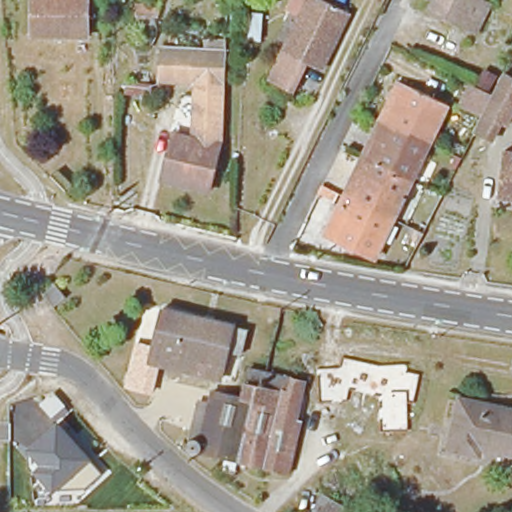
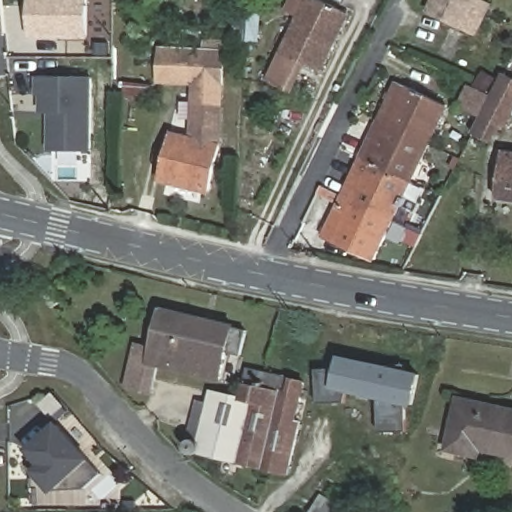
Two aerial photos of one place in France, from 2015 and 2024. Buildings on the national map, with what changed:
unchanged [(87,39),(31,39),(31,0),(87,0),(87,39)]
unchanged [(319,75),(306,69),(294,93),(270,82),(282,56),(309,0),(313,0),(346,16),(319,75)]
unchanged [(476,33),(464,27),(429,11),(434,0),(476,0),(489,5),(476,33)]
unchanged [(203,51),(204,41),(224,42),(221,83),(193,81),(158,79),(160,49),(203,51)]
unchanged [(477,132),(486,113),(507,71),(512,74),(512,118),(509,124),(500,120),(491,139),(477,132)]
new [(93,150),(49,150),(50,113),(41,113),(41,96),(37,95),(37,77),(93,77),(93,150)]
unchanged [(219,143),(218,156),(208,199),(161,189),(172,146),(175,133),(192,136),(193,81),(221,83),(219,143)]
unchanged [(470,83),(478,87),(490,93),(480,114),(469,109),(460,105),(470,83)]
unchanged [(327,241),(343,202),(360,164),(377,124),(394,84),(404,88),(442,105),(373,261),(327,241)]
unchanged [(498,203),(504,155),(512,156),(512,205),(498,203)]
unchanged [(50,271),(42,266),(48,258),(55,263),(50,271)]
unchanged [(232,325),(232,327),(246,330),(241,355),(226,352),(220,378),(181,370),(180,378),(171,384),(155,381),(152,392),(126,386),(136,344),(153,348),(161,310),(232,325)]
new [(349,392),(347,402),(318,404),(316,368),(337,367),(339,354),(421,372),(417,389),(414,406),(407,405),(408,432),(379,433),(378,398),(349,392)]
demolished [(351,359),(381,365),(377,386),(347,381),(351,359)]
unchanged [(197,401),(209,404),(212,392),(242,398),(247,369),(305,381),(297,420),(300,421),(288,475),(189,452),(190,442),(188,442),(197,401)]
unchanged [(476,448),(475,456),(447,450),(457,401),(512,413),(512,455),(476,448)]
unchanged [(103,473),(86,488),(58,489),(53,493),(34,470),(31,454),(26,448),(59,422),(91,458),(103,473)]
unchanged [(345,512),(312,512),(321,497),(345,512)]

